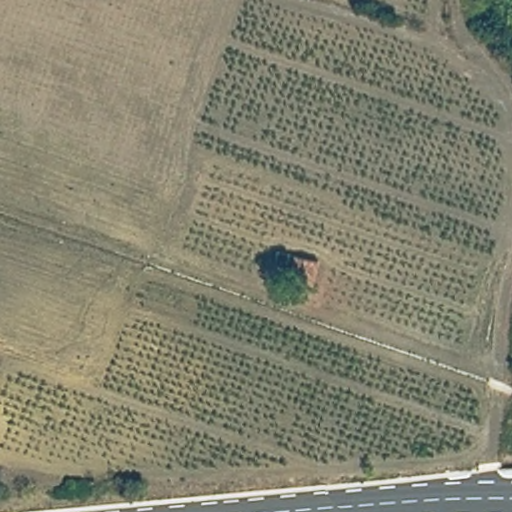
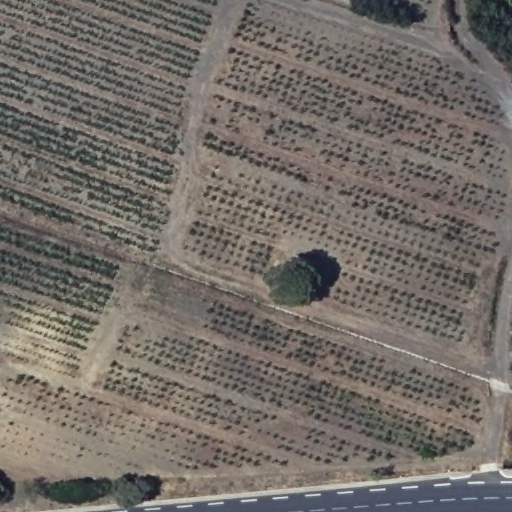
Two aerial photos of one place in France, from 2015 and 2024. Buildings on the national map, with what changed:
unchanged [(320,258),(315,284),(273,274),(280,245),(320,258)]

